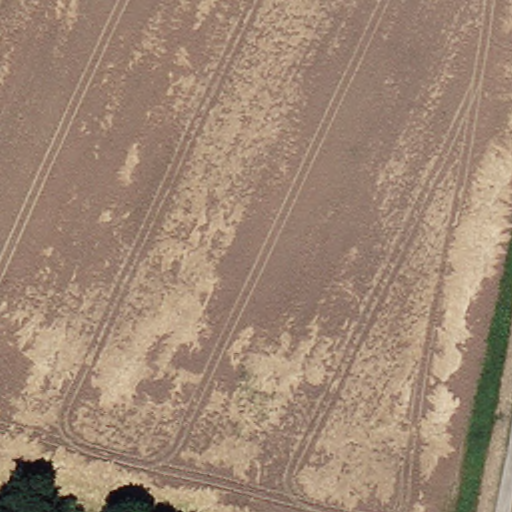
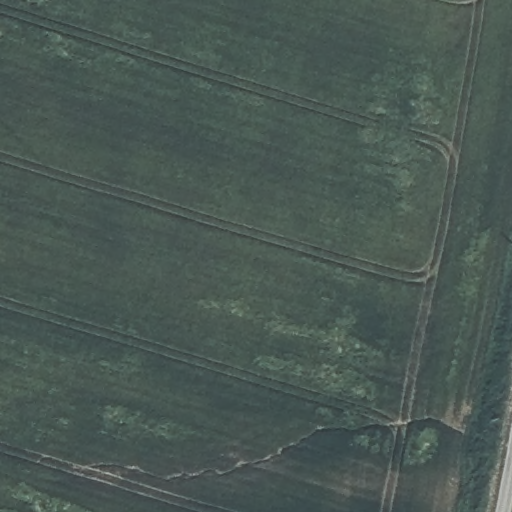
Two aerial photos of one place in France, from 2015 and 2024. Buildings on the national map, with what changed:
[]

